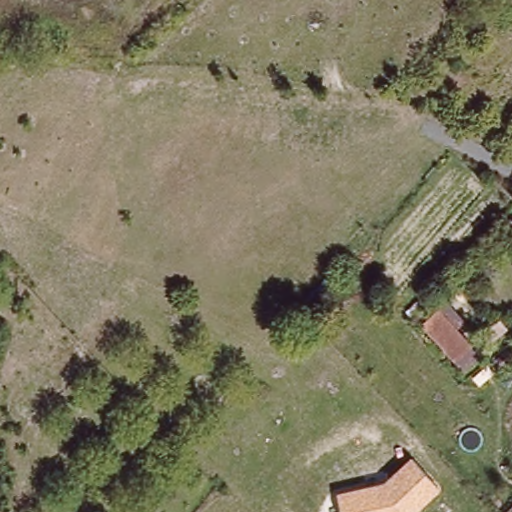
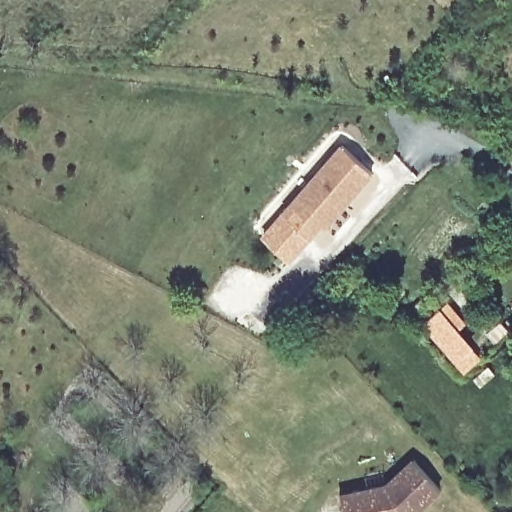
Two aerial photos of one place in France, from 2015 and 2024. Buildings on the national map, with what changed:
new [(374,172),(326,227),(323,225),(311,237),(290,261),(260,236),(341,144),(374,172)]
unchanged [(443,319),(475,353),(458,367),(428,334),(443,319)]
unchanged [(417,512),(343,512),(339,494),(385,483),(412,458),(441,488),(417,512)]

